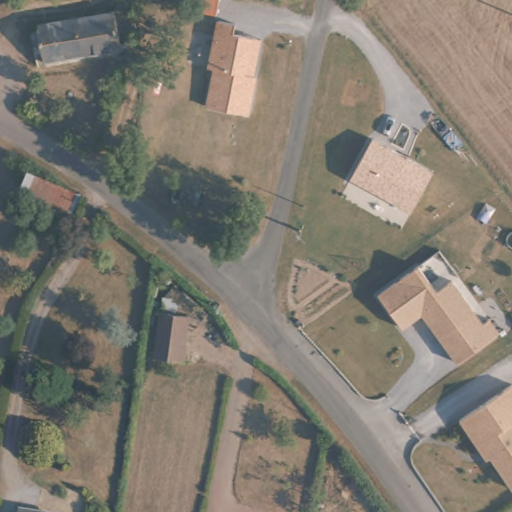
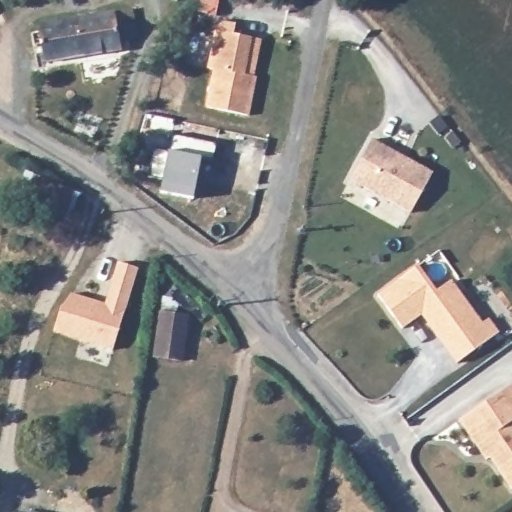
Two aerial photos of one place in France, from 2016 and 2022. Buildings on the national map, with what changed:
unchanged [(132,8),(137,43),(80,53),(76,16),(132,8)]
unchanged [(76,16),(80,53),(45,58),(46,62),(36,63),(29,30),(39,28),(38,20),(76,16)]
unchanged [(233,26),(232,35),(249,39),(242,75),(254,78),(254,80),(247,117),(206,109),(211,86),(213,71),(208,70),(217,23),(233,26)]
new [(159,192),(161,179),(147,176),(153,149),(168,152),(171,135),(215,143),(212,162),(200,160),(193,198),(159,192)]
unchanged [(432,175),(409,216),(349,179),(372,139),(432,175)]
unchanged [(81,201),(68,225),(16,197),(29,172),(81,201)]
demolished [(203,197),(199,211),(172,201),(176,188),(203,197)]
new [(52,332),(69,293),(103,303),(116,262),(137,268),(112,351),(52,332)]
unchanged [(427,325),(434,320),(428,311),(402,330),(377,297),(417,268),(436,293),(451,282),(482,325),(485,323),(488,321),(498,334),(479,348),(457,365),(427,325)]
unchanged [(183,315),(176,362),(148,356),(155,310),(183,315)]
unchanged [(482,455),(463,426),(459,421),(464,417),(511,386),(512,386),(512,491),(486,453),(482,455)]
unchanged [(40,512),(20,512),(20,509),(40,512)]

